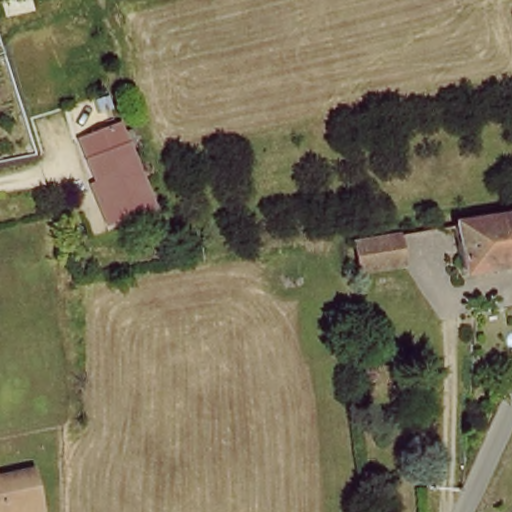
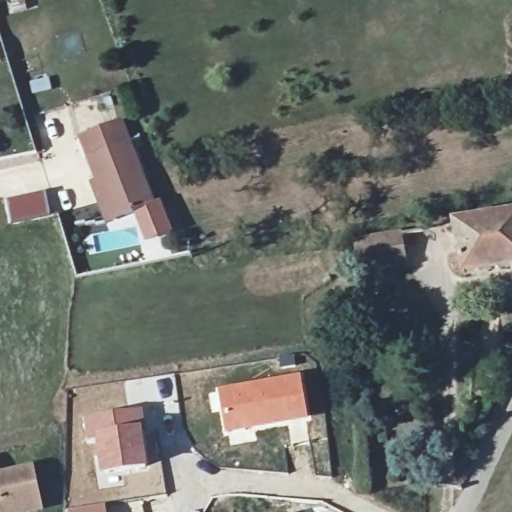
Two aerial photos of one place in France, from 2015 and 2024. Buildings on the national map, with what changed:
unchanged [(121,121),(151,205),(110,220),(80,135),(121,121)]
unchanged [(512,210),(512,263),(464,272),(454,221),(486,215),(512,210)]
unchanged [(400,235),(405,265),(361,273),(356,244),(400,235)]
new [(300,373),(308,420),(225,437),(216,388),(300,373)]
new [(143,407),(148,470),(99,478),(93,440),(86,441),(83,417),(143,407)]
unchanged [(41,506),(14,512),(0,512),(0,472),(33,464),(41,506)]
new [(105,507),(106,512),(71,512),(105,507)]

